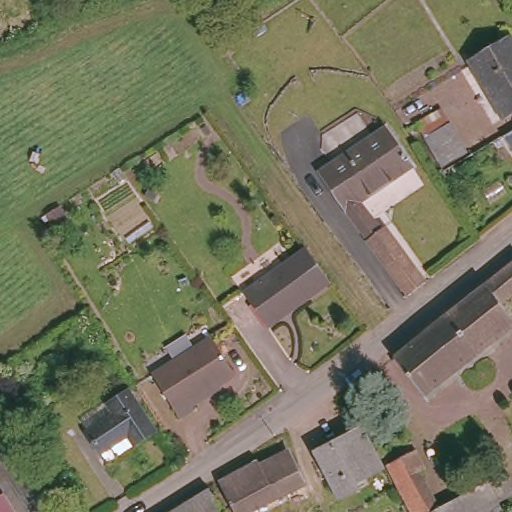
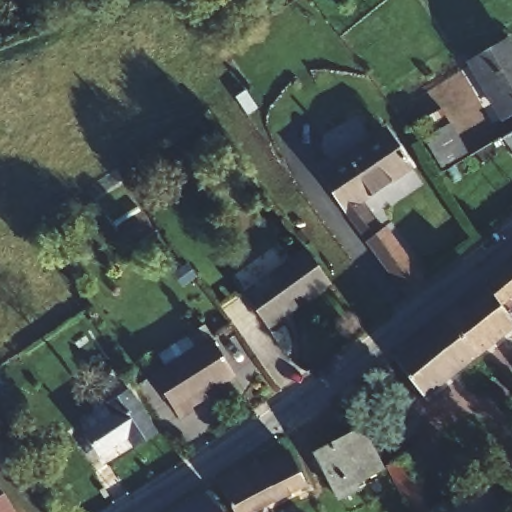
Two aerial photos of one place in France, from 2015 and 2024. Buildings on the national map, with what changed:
unchanged [(498,116),(477,81),(467,65),(506,41),(512,51),(512,107),(498,116)]
unchanged [(421,133),(449,116),(455,126),(451,129),(471,160),(447,175),(421,133)]
unchanged [(502,133),(512,127),(512,145),(502,133)]
unchanged [(327,181),(358,161),(348,146),(355,142),(359,148),(387,131),(391,139),(407,164),(354,198),(376,228),(384,223),(425,277),(407,291),(336,198),(327,181)]
unchanged [(267,328),(244,295),(304,251),(330,286),(267,328)]
unchanged [(449,311),(512,260),(512,299),(507,302),(512,309),(512,329),(480,354),(449,311)]
unchanged [(428,395),(396,354),(449,311),(480,354),(428,395)]
unchanged [(152,376),(208,337),(235,375),(192,404),(197,410),(184,419),(152,376)]
unchanged [(109,454),(92,430),(86,420),(112,404),(104,392),(129,377),(165,430),(140,446),(115,463),(109,454)]
unchanged [(357,478),(361,486),(337,497),(314,447),(366,424),(385,465),(357,478)]
unchanged [(386,461),(412,448),(420,466),(414,469),(435,512),(410,512),(386,461)]
unchanged [(251,511),(251,512),(233,512),(219,482),(259,458),(260,461),(283,449),(302,486),(251,511)]
unchanged [(502,480),(512,500),(512,512),(437,512),(502,480)]
unchanged [(211,487),(224,512),(170,512),(211,487)]

